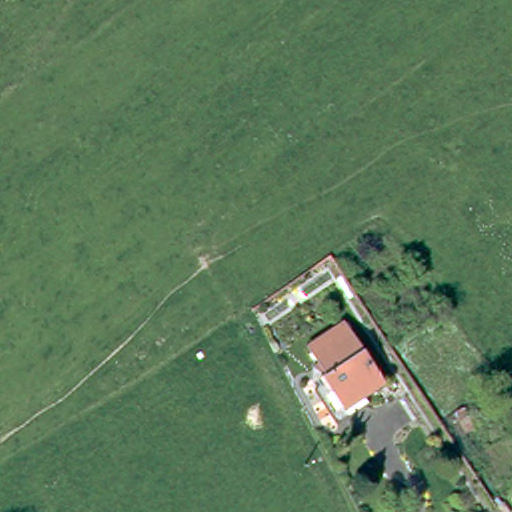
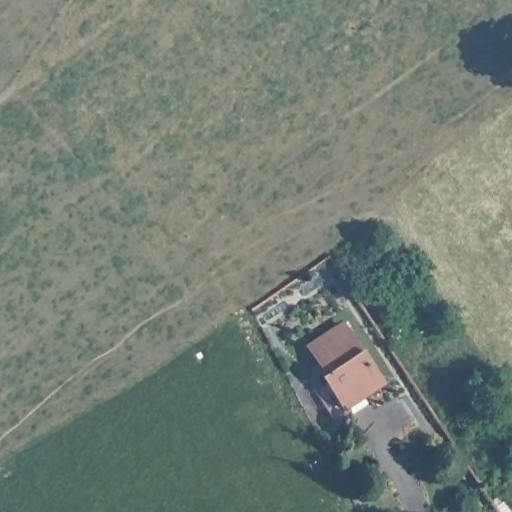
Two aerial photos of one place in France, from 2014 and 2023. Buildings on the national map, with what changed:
unchanged [(314,359),(318,356),(306,338),(340,316),(379,374),(341,399),(314,359)]

